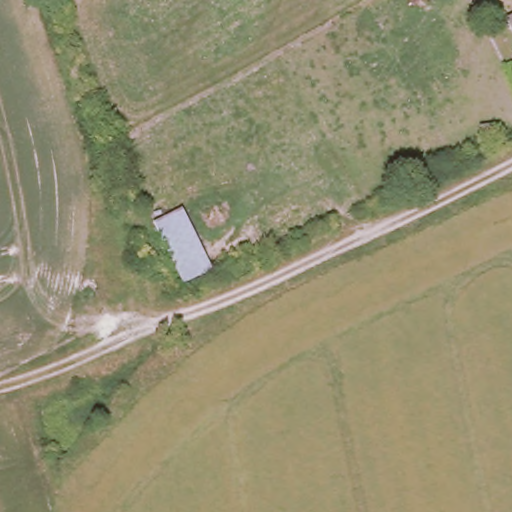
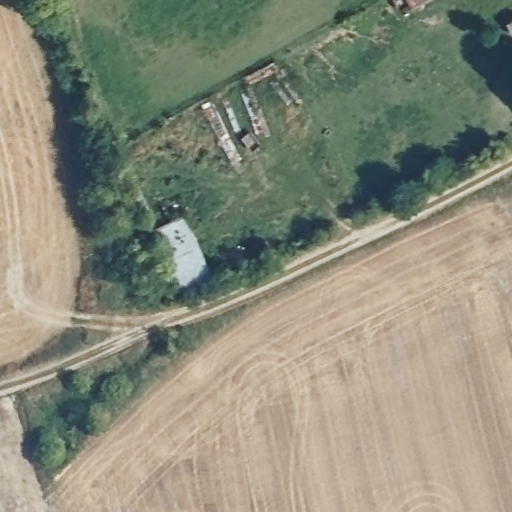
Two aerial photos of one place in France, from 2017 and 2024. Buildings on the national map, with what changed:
unchanged [(411,0),(427,0),(415,7),(411,0)]
unchanged [(512,26),(509,19),(512,17),(512,26)]
unchanged [(155,225),(190,210),(220,273),(185,286),(155,225)]

